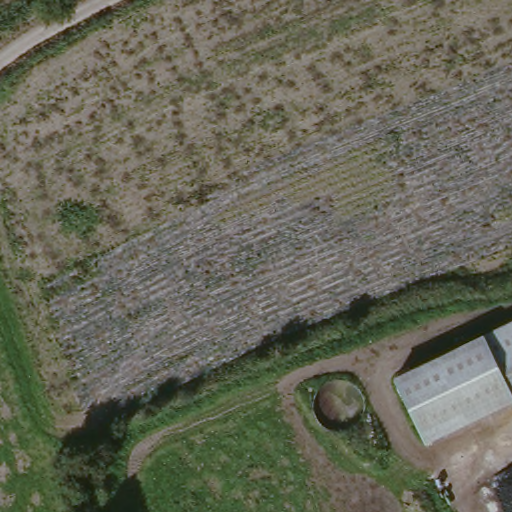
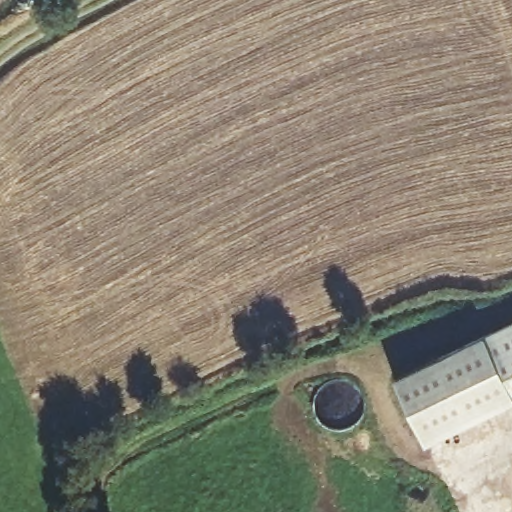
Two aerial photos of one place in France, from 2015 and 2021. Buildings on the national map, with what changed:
unchanged [(507,403),(417,443),(389,379),(512,326),(512,415),(507,403)]

